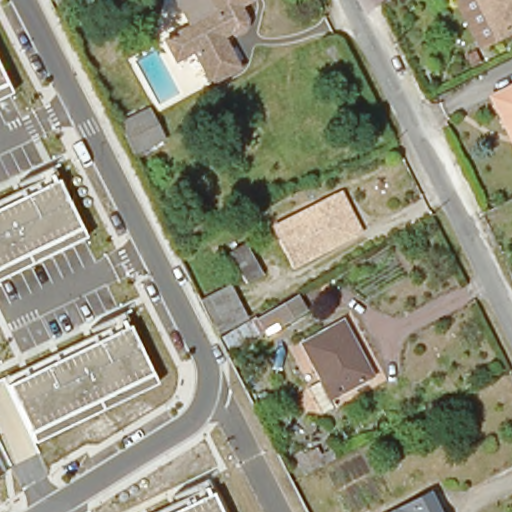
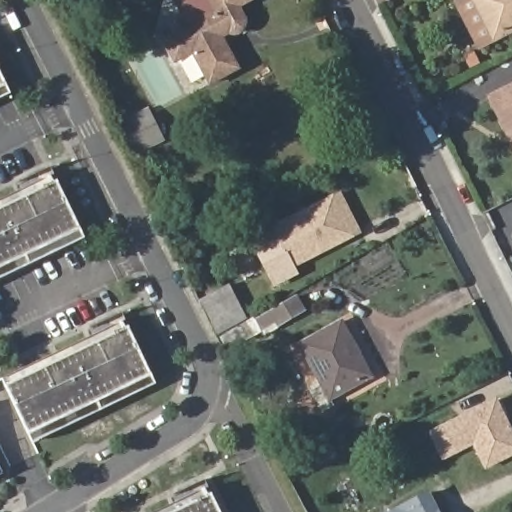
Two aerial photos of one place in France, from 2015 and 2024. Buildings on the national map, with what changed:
unchanged [(228,59),(232,67),(206,81),(202,73),(189,49),(174,57),(163,35),(193,20),(189,10),(185,12),(179,0),(242,0),(238,2),(244,13),(245,16),(245,18),(245,21),(244,23),(243,25),(241,27),(239,28),(237,29),(234,29),(232,29),(231,29),(217,37),(228,59)]
unchanged [(475,48),(452,0),(471,0),(492,42),(475,48)]
unchanged [(512,29),(492,39),(472,0),(512,0),(512,29)]
unchanged [(13,94),(0,100),(0,68),(13,94)]
unchanged [(488,110),(512,98),(512,157),(507,147),(488,110)]
unchanged [(148,112),(161,138),(135,152),(122,125),(148,112)]
unchanged [(20,191),(16,183),(51,166),(59,181),(86,236),(0,279),(0,201),(20,191)]
unchanged [(273,221),(331,190),(339,186),(360,224),(352,228),(294,260),(273,221)]
unchanged [(261,272),(246,281),(227,252),(243,242),(261,272)]
unchanged [(229,274),(246,307),(216,324),(199,291),(229,274)]
unchanged [(260,339),(257,334),(230,351),(216,324),(246,307),(249,314),(255,312),(298,287),(306,303),(310,311),(260,339)]
unchanged [(157,385),(37,442),(10,385),(6,378),(96,335),(92,326),(123,312),(129,327),(157,385)]
unchanged [(325,404),(295,351),(337,328),(365,382),(325,404)]
new [(473,446),(443,460),(428,431),(497,397),(512,427),(512,456),(485,470),(473,446)]
unchanged [(173,493),(206,477),(214,496),(222,512),(157,512),(177,502),(173,493)]
unchanged [(439,512),(389,512),(388,509),(426,488),(439,512)]

